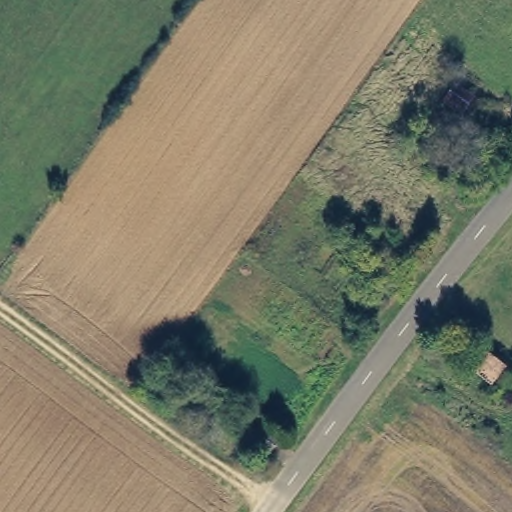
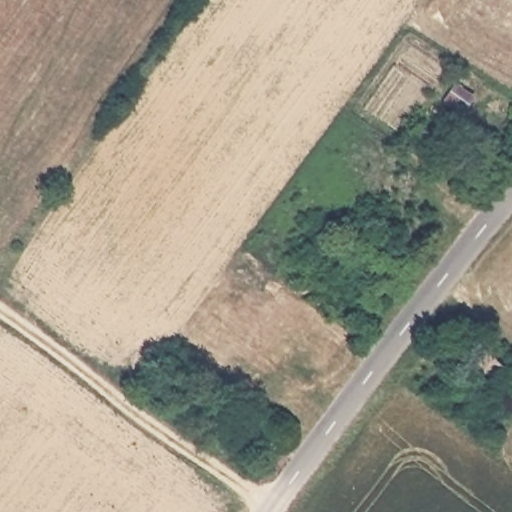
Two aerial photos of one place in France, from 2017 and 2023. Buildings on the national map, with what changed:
unchanged [(284,435),(273,451),(253,433),(263,420),(284,435)]

